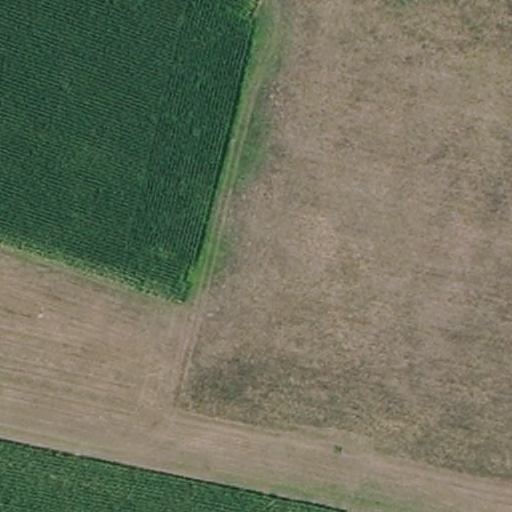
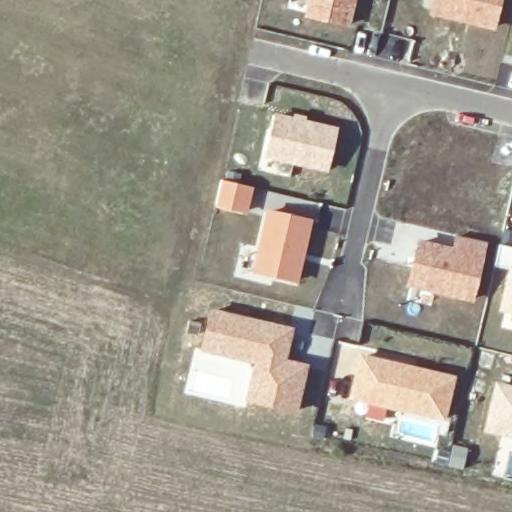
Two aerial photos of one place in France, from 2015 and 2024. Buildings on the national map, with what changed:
new [(349,27),(303,16),(307,0),(356,0),(349,27)]
new [(433,15),(436,0),(501,0),(494,30),(433,15)]
new [(279,126),(282,112),(339,126),(328,172),(271,159),(273,149),(266,147),(271,124),(279,126)]
new [(307,227),(311,228),(298,284),(251,273),(266,208),(309,218),(307,227)]
new [(406,286),(411,261),(418,248),(414,247),(415,244),(424,246),(427,233),(486,247),(473,302),(406,286)]
new [(287,359),(309,364),(297,414),(245,402),(252,364),(205,353),(206,346),(201,344),(209,307),(294,327),(287,359)]
new [(349,399),(351,389),(355,390),(356,383),(352,382),(359,353),(456,375),(445,423),(349,399)]
new [(483,431),(495,381),(512,385),(512,438),(483,431)]

